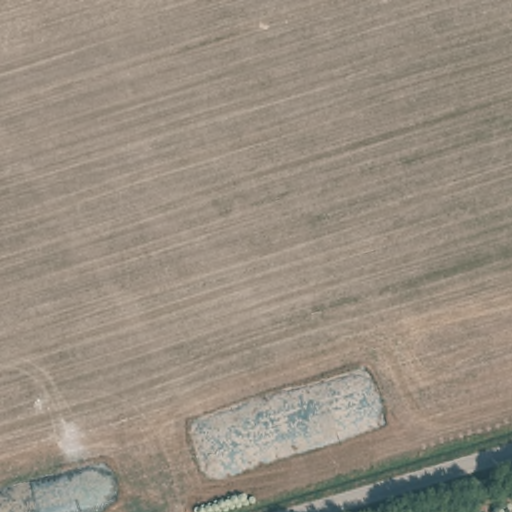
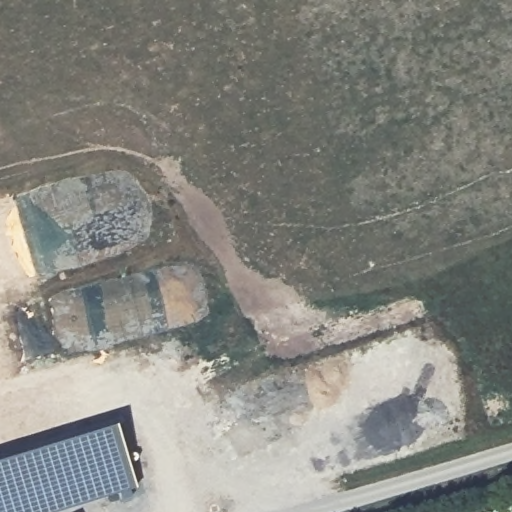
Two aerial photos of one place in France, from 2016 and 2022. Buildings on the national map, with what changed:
new [(51,512),(0,512),(0,455),(120,420),(138,485),(51,512)]

